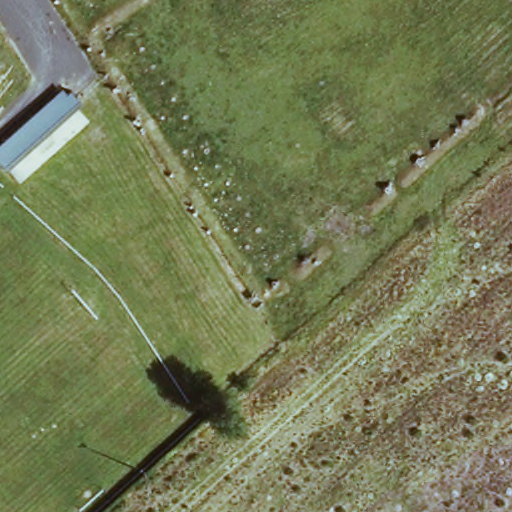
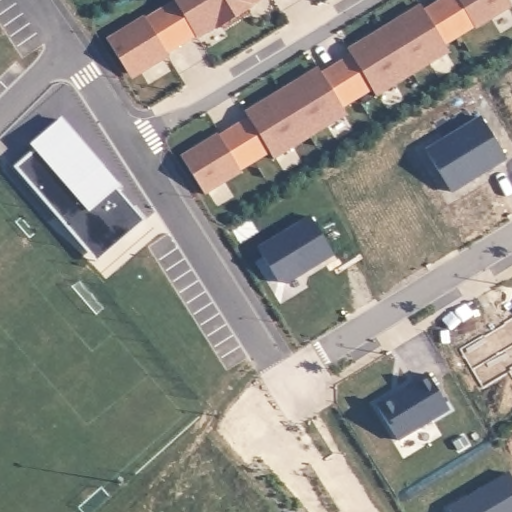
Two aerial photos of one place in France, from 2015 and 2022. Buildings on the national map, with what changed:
new [(176,5),(173,0),(224,0),(235,19),(222,27),(220,25),(197,39),(195,36),(181,45),(162,14),(176,5)]
new [(247,8),(249,10),(235,19),(224,0),(260,0),(247,8)]
new [(512,6),(512,7),(476,29),(474,26),(459,35),(440,3),(445,0),(508,0),(512,6)]
new [(399,20),(401,22),(423,8),(425,12),(440,3),(459,35),(444,44),(449,52),(413,74),(385,28),(399,20)]
new [(145,19),(147,23),(162,14),(181,45),(166,54),(168,57),(148,69),(145,65),(129,75),(108,42),(145,19)]
new [(352,56),(350,53),(372,40),(370,37),(385,28),(413,74),(376,96),(372,89),(357,98),(337,65),(352,56)]
new [(297,82),(298,85),(320,71),(322,75),(337,65),(357,98),(342,107),(346,114),(310,136),(282,91),(297,82)]
demolished [(63,85),(69,90),(72,86),(79,96),(79,97),(4,162),(0,158),(0,142),(63,85)]
new [(249,120),(247,116),(269,102),(268,100),(282,91),(310,136),(274,159),(269,151),(254,160),(235,129),(249,120)]
new [(482,119),(507,160),(451,193),(426,153),(482,119)]
new [(67,230),(14,167),(35,149),(32,145),(61,120),(118,186),(116,188),(144,221),(124,239),(96,263),(67,230)]
new [(196,149),(198,152),(235,129),(254,160),(239,169),(241,172),(205,195),(181,158),(196,149)]
new [(311,218),(333,255),(285,285),(278,283),(258,250),(311,218)]
new [(377,407),(428,376),(449,410),(398,442),(377,407)]
new [(512,479),(512,512),(450,512),(449,510),(509,474),(512,479)]

